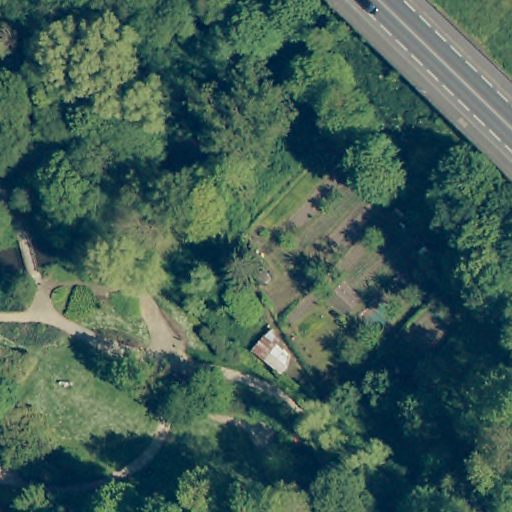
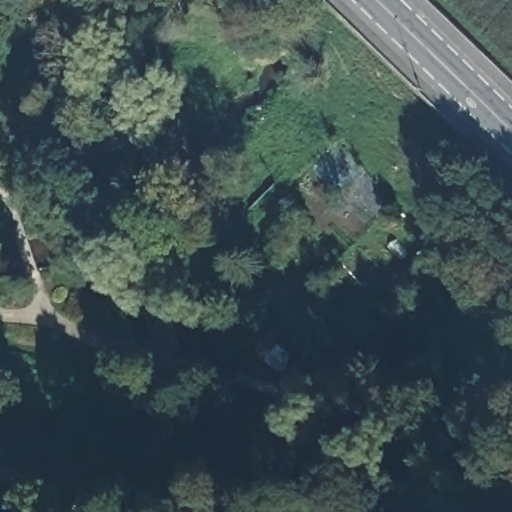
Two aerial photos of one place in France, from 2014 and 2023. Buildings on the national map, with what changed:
unchanged [(298,357),(285,372),(258,348),(277,332),(298,357)]

